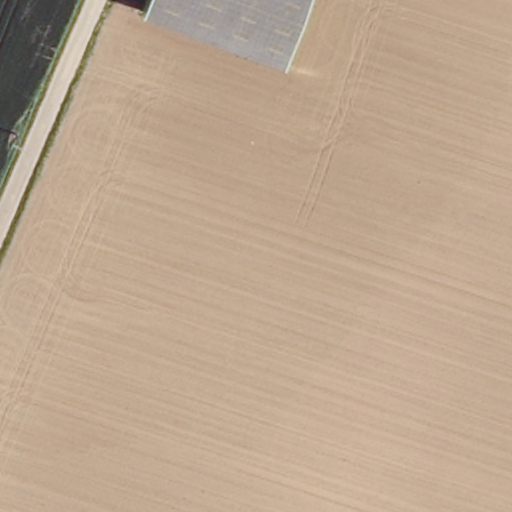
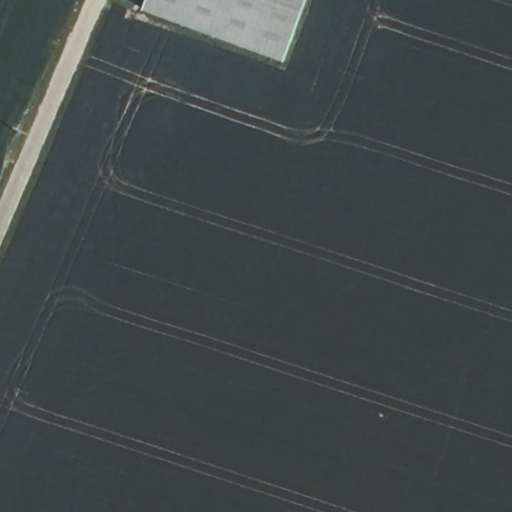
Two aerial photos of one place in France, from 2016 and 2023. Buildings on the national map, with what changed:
unchanged [(288,58),(144,11),(148,0),(308,0),(288,58)]

